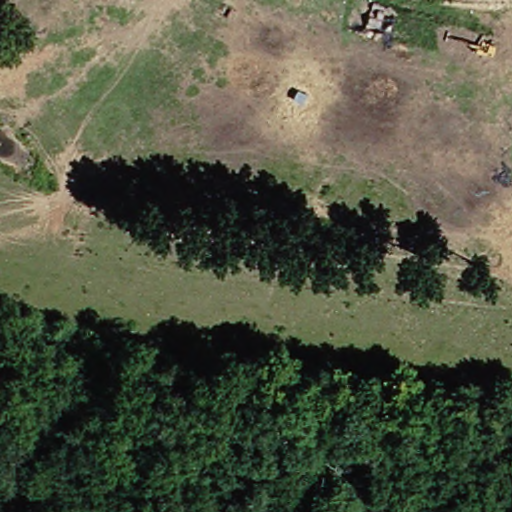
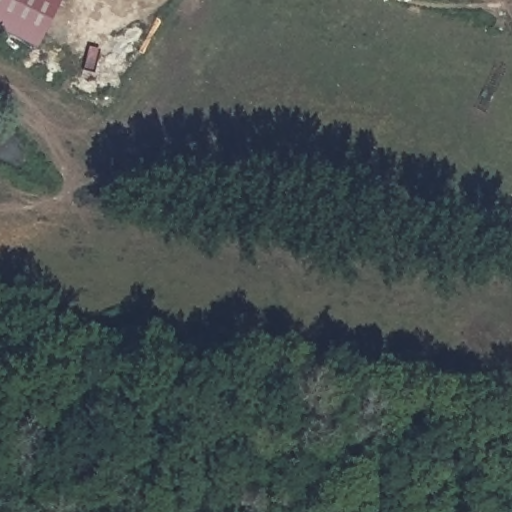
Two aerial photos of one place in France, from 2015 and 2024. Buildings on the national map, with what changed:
new [(0,0),(60,0),(35,51),(0,33),(0,0)]

